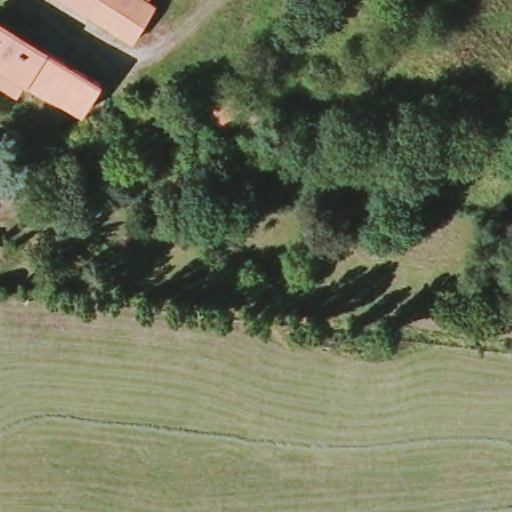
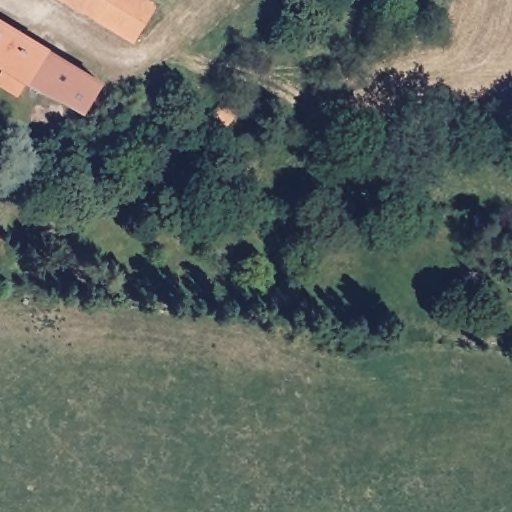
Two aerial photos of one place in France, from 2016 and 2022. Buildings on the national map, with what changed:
unchanged [(152,9),(132,42),(65,0),(144,0),(142,1),(152,9)]
unchanged [(60,99),(39,91),(25,83),(15,96),(0,86),(0,69),(1,67),(0,66),(0,20),(103,84),(84,114),(60,99)]
unchanged [(200,122),(230,93),(245,108),(219,140),(200,122)]
unchanged [(139,109),(129,123),(120,119),(131,104),(139,109)]

